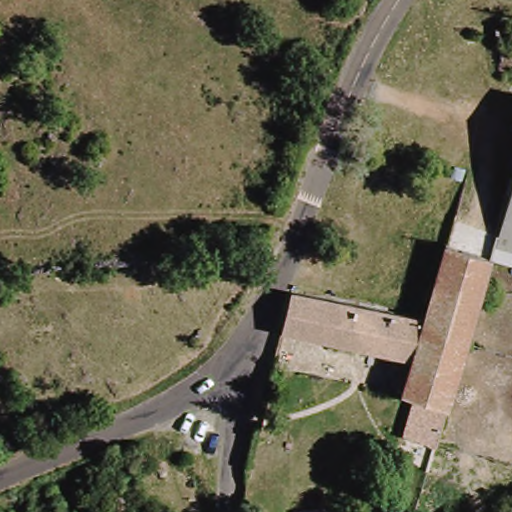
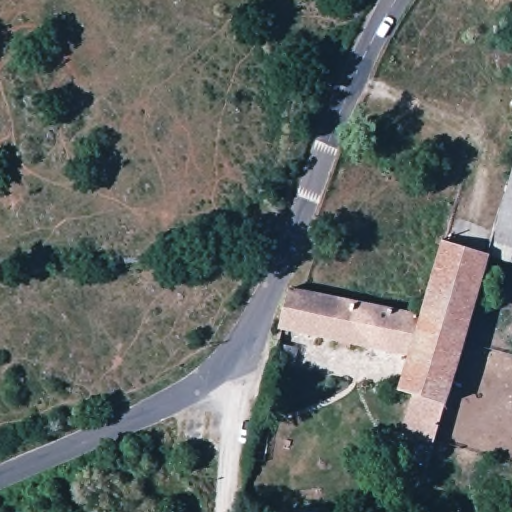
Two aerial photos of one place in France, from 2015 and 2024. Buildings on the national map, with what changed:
unchanged [(512,163),(512,257),(490,248),(512,163)]
unchanged [(447,396),(419,390),(402,385),(412,350),(424,309),(445,234),(490,248),(447,396)]
unchanged [(424,309),(412,350),(280,323),(290,285),(424,309)]
unchanged [(434,435),(410,428),(419,390),(447,396),(434,435)]

